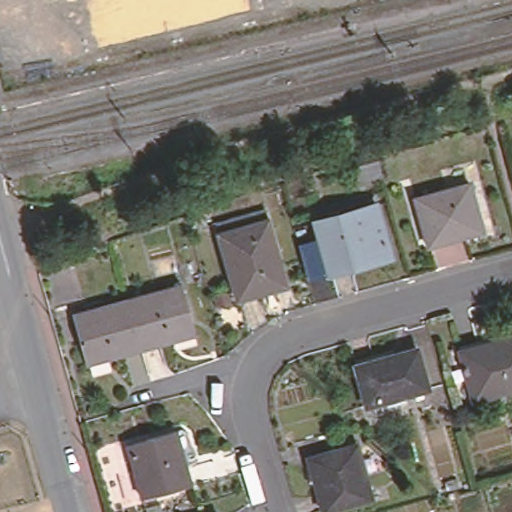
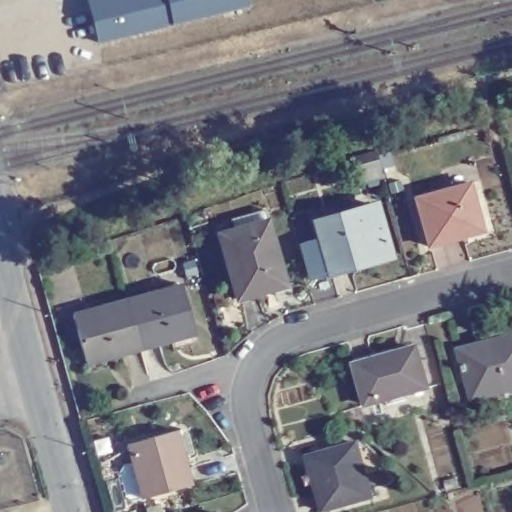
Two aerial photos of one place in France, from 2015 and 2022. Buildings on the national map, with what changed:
new [(98,43),(87,0),(248,0),(250,5),(98,43)]
unchanged [(467,184),(480,232),(425,246),(413,198),(467,184)]
unchanged [(372,206),(385,257),(327,271),(315,221),(372,206)]
unchanged [(217,239),(265,226),(282,292),(262,298),(260,292),(232,299),(217,239)]
unchanged [(126,305),(180,290),(194,339),(140,354),(126,305)]
unchanged [(85,370),(70,321),(126,305),(140,354),(85,370)]
unchanged [(512,337),(512,388),(473,398),(460,350),(512,337)]
unchanged [(417,352),(428,391),(367,407),(357,368),(417,352)]
unchanged [(176,431),(191,486),(142,499),(127,445),(176,431)]
unchanged [(352,448),(368,501),(331,512),(318,512),(303,462),(352,448)]

